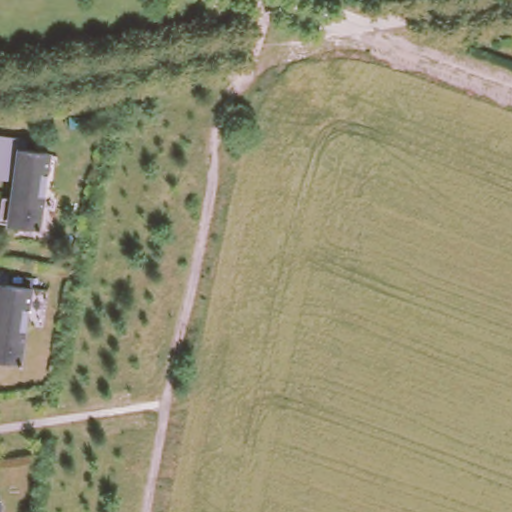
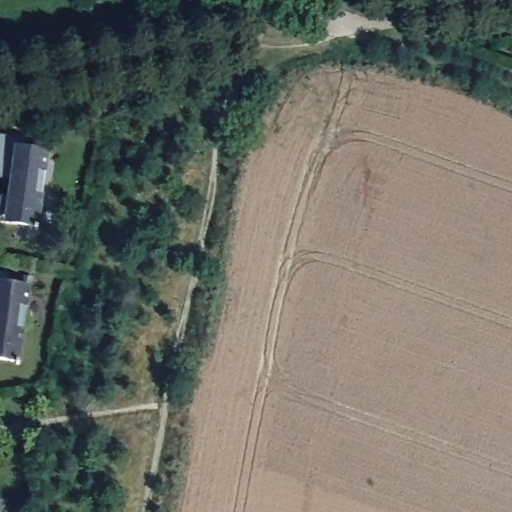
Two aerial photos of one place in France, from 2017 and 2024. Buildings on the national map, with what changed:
unchanged [(22,149),(47,152),(37,227),(37,229),(35,229),(35,227),(0,222),(0,196),(8,197),(12,172),(0,170),(0,135),(24,139),(22,149)]
unchanged [(5,284),(30,287),(19,362),(18,364),(15,363),(16,361),(0,359),(0,273),(6,274),(5,284)]

